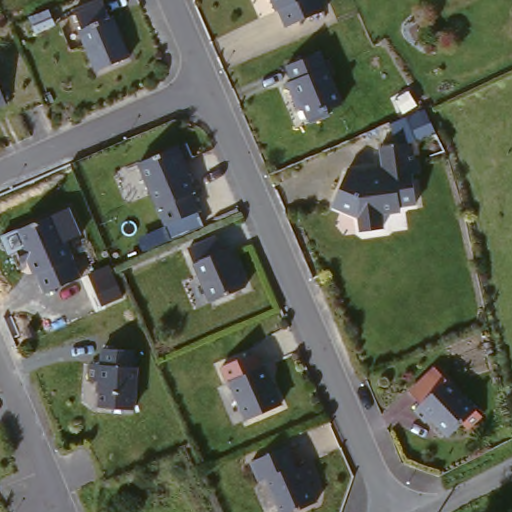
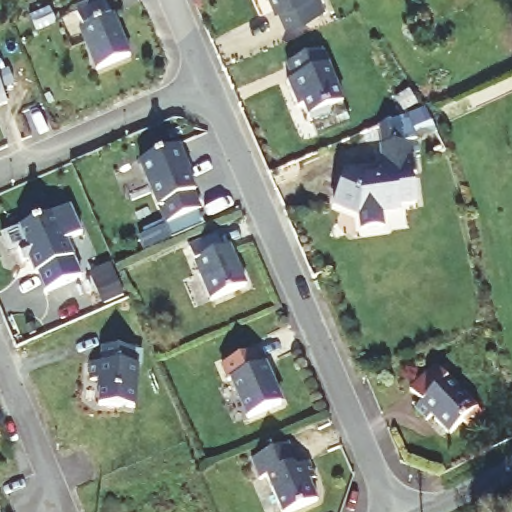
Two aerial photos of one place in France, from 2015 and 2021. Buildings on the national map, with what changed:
unchanged [(313,12),(276,27),(264,0),(308,0),(313,12)]
unchanged [(99,6),(121,59),(88,72),(68,19),(99,6)]
unchanged [(317,54),(337,106),(325,111),(326,116),(305,124),(300,107),(293,110),(283,85),(289,84),(284,67),(317,54)]
unchanged [(3,107),(0,108),(0,98),(3,107)]
unchanged [(343,176),(359,183),(379,179),(375,151),(406,146),(411,174),(406,177),(408,208),(393,209),(393,214),(373,217),(373,229),(351,234),(349,218),(329,207),(343,176)]
unchanged [(167,155),(186,201),(181,202),(189,220),(154,235),(128,172),(167,155)]
unchanged [(66,214),(76,241),(61,248),(75,285),(43,297),(35,277),(29,280),(23,265),(17,267),(12,255),(22,251),(15,234),(66,214)]
unchanged [(219,242),(225,259),(231,255),(246,295),(204,312),(181,258),(219,242)]
unchanged [(111,278),(124,310),(105,317),(93,285),(111,278)]
unchanged [(137,348),(136,363),(141,364),(138,406),(103,404),(104,379),(94,378),(96,361),(106,361),(107,345),(137,348)]
unchanged [(253,358),(275,411),(238,427),(216,373),(253,358)]
unchanged [(430,370),(476,418),(459,432),(454,428),(441,441),(423,422),(419,425),(411,414),(416,404),(406,392),(430,370)]
unchanged [(292,472),(306,466),(313,484),(306,486),(314,506),(301,512),(278,512),(266,482),(258,485),(251,465),(282,450),(292,472)]

